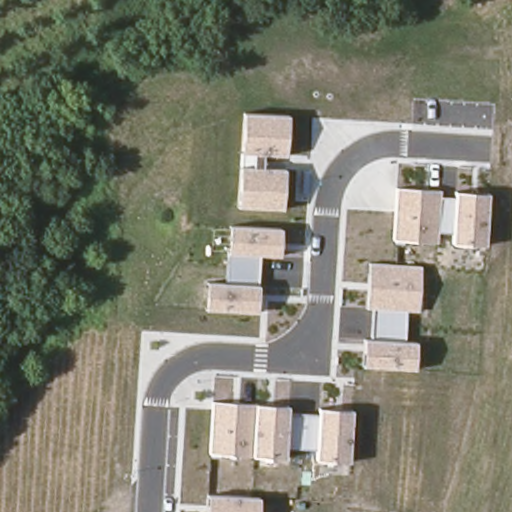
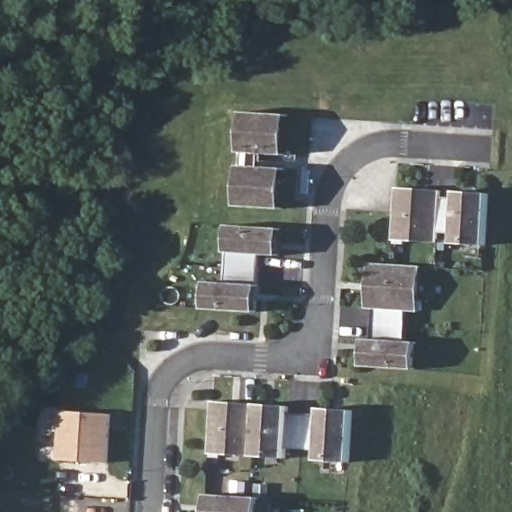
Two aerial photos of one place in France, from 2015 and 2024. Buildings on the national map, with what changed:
unchanged [(236,207),(237,169),(252,169),(253,155),(240,154),(242,114),(287,116),(285,155),(264,154),(263,168),(283,169),(281,209),(236,207)]
unchanged [(397,195),(486,200),(484,243),(395,238),(397,195)]
unchanged [(257,311),(205,308),(207,281),(226,282),(228,252),(229,224),(281,227),(280,255),(260,254),(260,285),(257,311)]
unchanged [(419,267),(418,312),(409,312),(408,343),(416,342),(414,369),(371,366),(377,266),(419,267)]
unchanged [(351,460),(317,458),(317,448),(284,446),(284,458),(210,452),(212,410),(353,418),(351,460)]
new [(114,415),(110,462),(62,460),(67,412),(114,415)]
unchanged [(260,497),(259,512),(207,512),(209,494),(260,497)]

